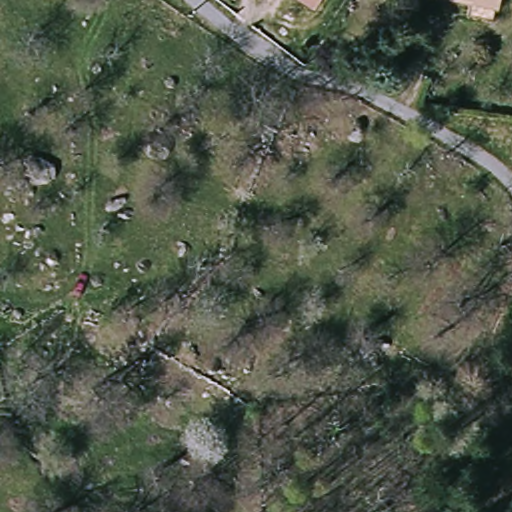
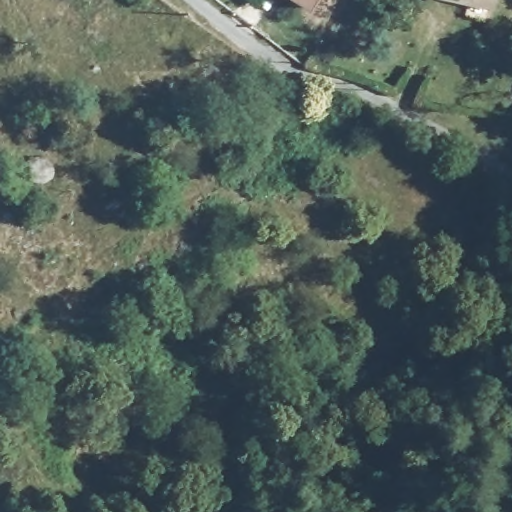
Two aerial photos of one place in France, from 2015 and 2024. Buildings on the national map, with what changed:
unchanged [(317,5),(304,0),(320,0),(317,5)]
unchanged [(497,5),(466,0),(498,0),(497,5)]

